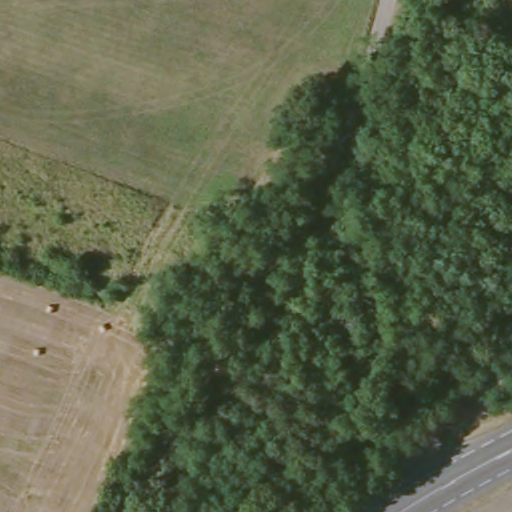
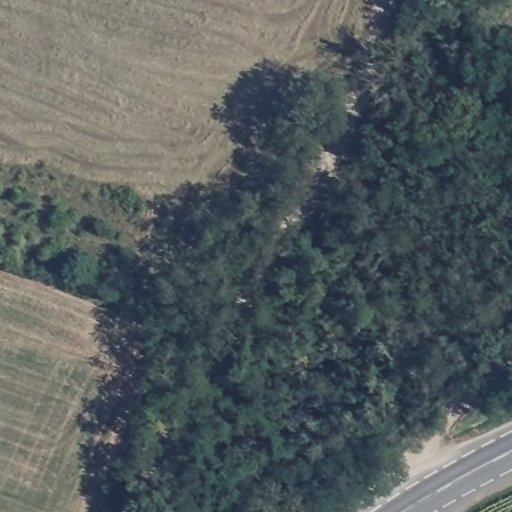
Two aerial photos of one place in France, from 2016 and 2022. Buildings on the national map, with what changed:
[]

